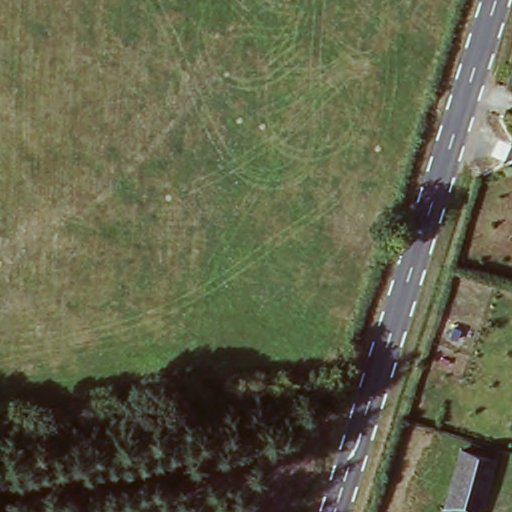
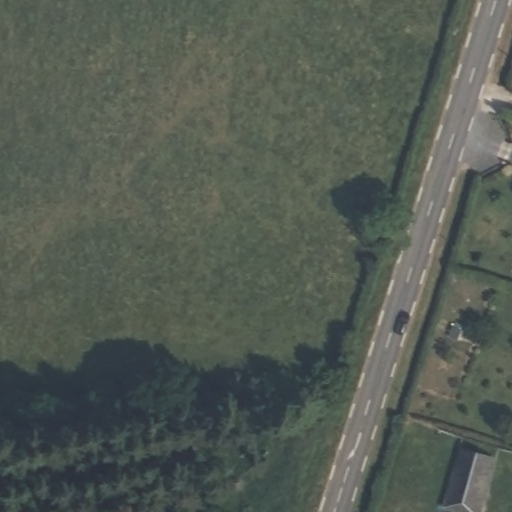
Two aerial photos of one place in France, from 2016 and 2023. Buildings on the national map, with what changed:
unchanged [(445,505),(459,445),(495,451),(481,512),(445,505)]

